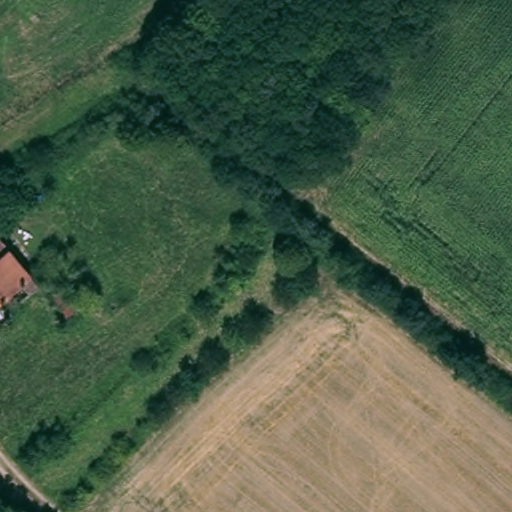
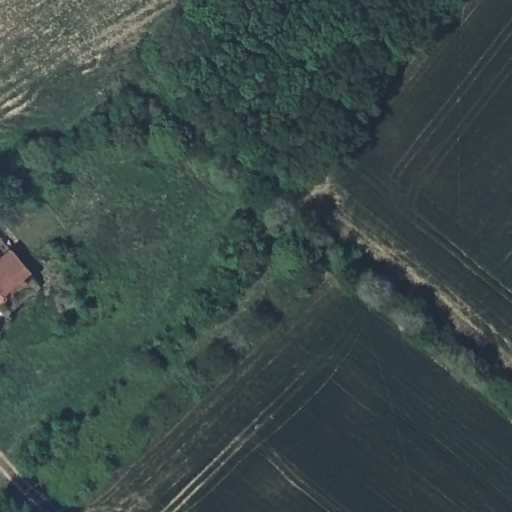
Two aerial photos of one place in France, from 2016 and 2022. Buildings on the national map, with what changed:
unchanged [(40,287),(0,322),(0,239),(40,287)]

